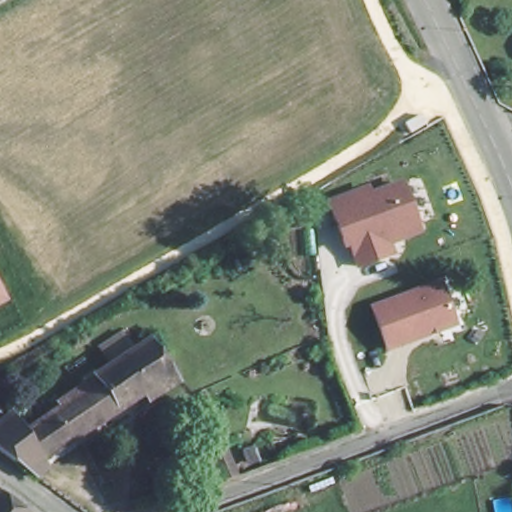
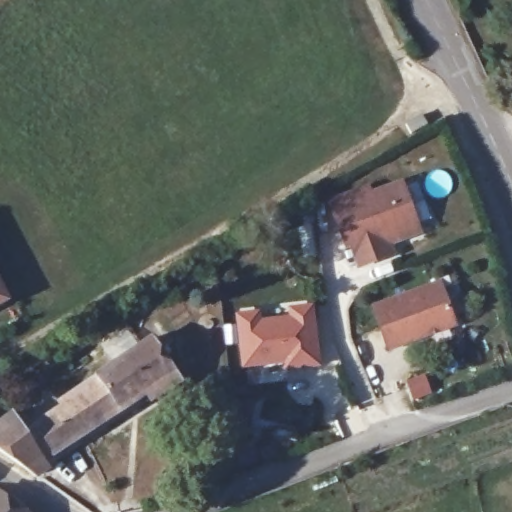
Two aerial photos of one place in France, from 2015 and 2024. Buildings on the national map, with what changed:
unchanged [(392,244),(395,256),(356,268),(350,247),(344,249),(325,200),(369,184),(371,190),(403,180),(423,234),(392,244)]
unchanged [(388,351),(370,305),(440,279),(457,326),(388,351)]
unchanged [(0,305),(0,280),(10,300),(0,305)]
new [(260,308),(262,317),(286,314),(285,305),(314,302),(322,367),(283,371),(281,365),(242,369),(234,312),(260,308)]
unchanged [(12,411),(23,428),(90,387),(87,378),(153,337),(154,339),(176,371),(26,468),(0,449),(0,419),(12,411)]
unchanged [(151,402),(143,392),(176,371),(184,381),(151,402)]
unchanged [(2,487),(20,501),(34,512),(0,512),(0,489),(2,487)]

